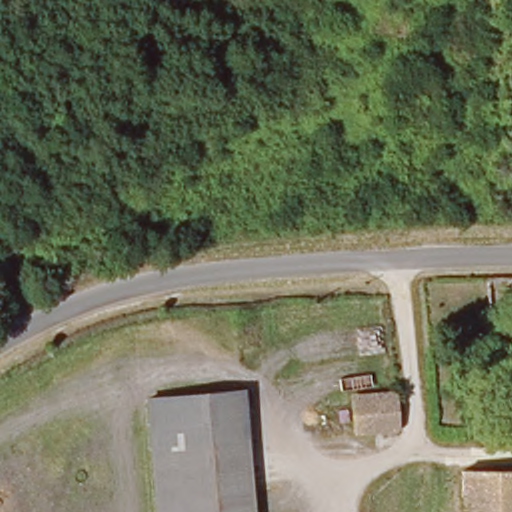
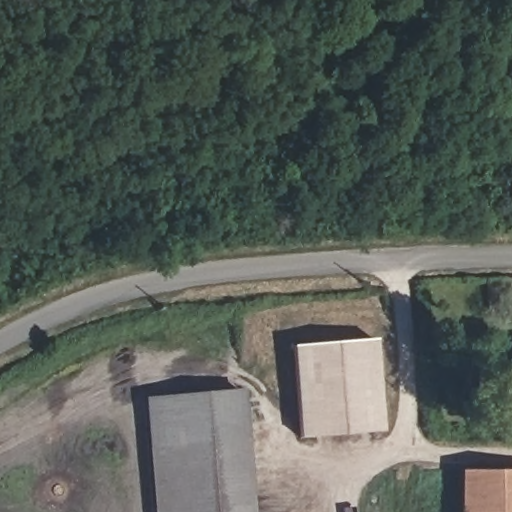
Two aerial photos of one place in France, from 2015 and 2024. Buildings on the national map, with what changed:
new [(384,431),(300,440),(292,345),(377,339),(384,431)]
unchanged [(245,393),(254,512),(158,512),(148,400),(245,393)]
unchanged [(512,472),(512,512),(463,512),(462,471),(512,472)]

